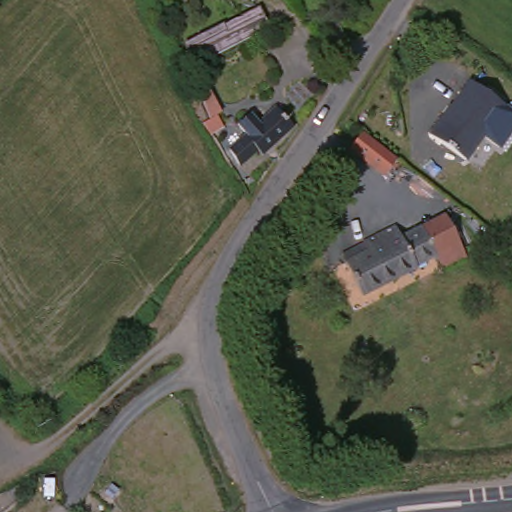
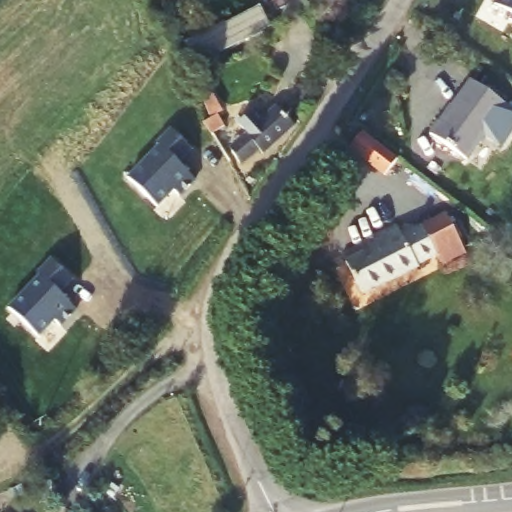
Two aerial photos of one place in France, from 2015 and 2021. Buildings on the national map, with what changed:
new [(511,16),(495,5),(497,0),(512,0),(512,21),(510,20),(511,16)]
unchanged [(192,43),(265,4),(274,21),(201,60),(192,43)]
unchanged [(470,84),(512,111),(512,147),(489,132),(464,160),(432,138),(470,84)]
unchanged [(221,86),(228,103),(214,110),(206,93),(221,86)]
unchanged [(258,144),(239,153),(234,131),(234,130),(235,129),(252,121),(247,110),(261,105),(266,115),(285,105),(297,132),(261,149),(258,144)]
unchanged [(397,159),(384,176),(350,144),(362,129),(397,159)]
new [(154,151),(151,148),(165,134),(188,154),(174,169),(191,185),(176,201),(169,195),(153,212),(123,184),(154,151)]
unchanged [(435,214),(455,250),(431,263),(412,225),(435,214)]
unchanged [(362,300),(340,253),(390,225),(395,235),(412,225),(431,263),(362,300)]
new [(37,283),(34,281),(48,266),(70,287),(56,300),(73,317),(58,333),(52,328),(36,345),(6,316),(37,283)]

